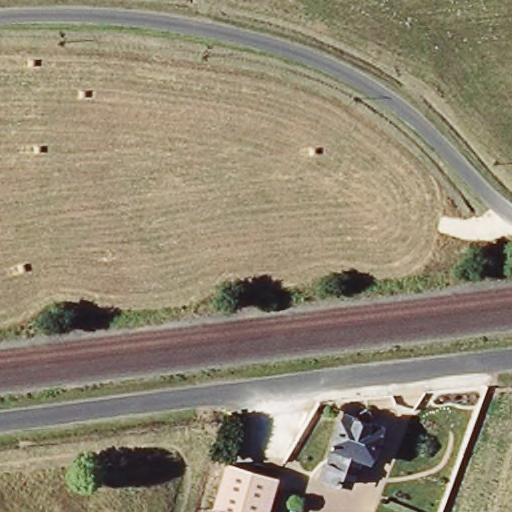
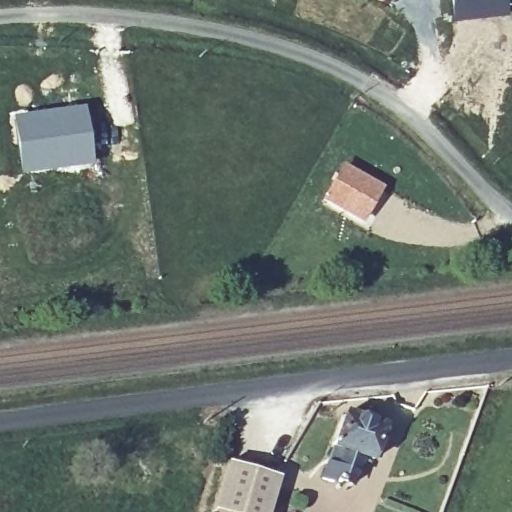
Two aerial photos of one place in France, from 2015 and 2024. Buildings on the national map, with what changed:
new [(453,23),(451,0),(506,0),(508,16),(453,23)]
new [(85,105),(94,165),(20,175),(12,115),(85,105)]
new [(342,164),(384,189),(363,225),(321,200),(342,164)]
unchanged [(359,416),(364,410),(370,407),(375,412),(374,421),(385,425),(373,458),(364,455),(355,482),(336,476),(333,482),(323,478),(347,413),(359,416)]
unchanged [(266,512),(248,512),(221,503),(233,462),(276,476),(266,512)]

